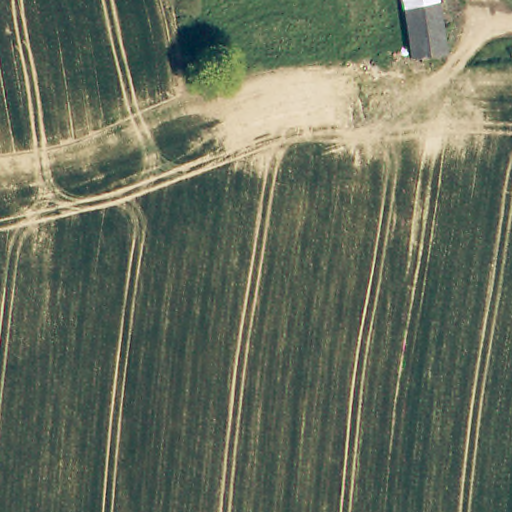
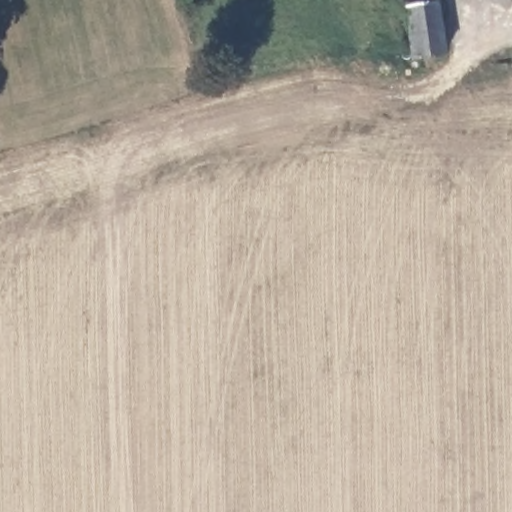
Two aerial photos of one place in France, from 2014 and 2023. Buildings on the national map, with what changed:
unchanged [(444,40),(408,44),(404,0),(439,0),(444,40)]

